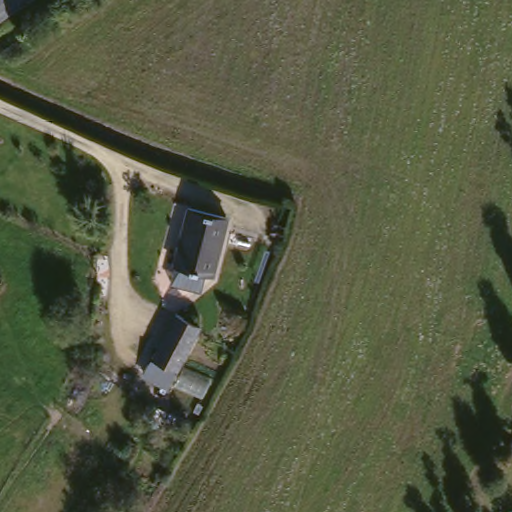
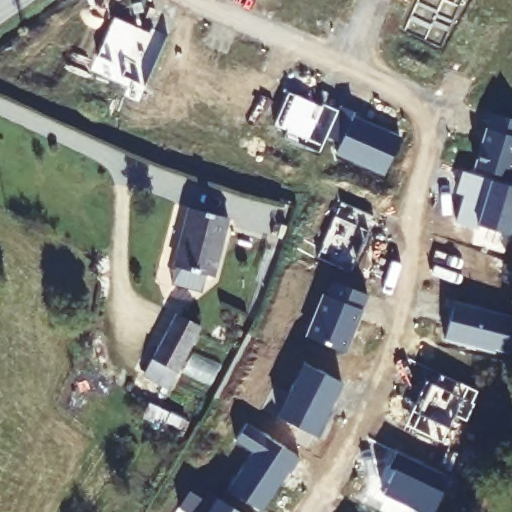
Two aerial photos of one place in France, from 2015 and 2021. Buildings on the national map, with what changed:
new [(419,0),(463,0),(442,48),(405,31),(419,0)]
new [(115,17),(150,32),(152,27),(169,35),(145,87),(122,77),(125,69),(98,57),(115,17)]
new [(290,94),(322,107),(324,104),(340,111),(329,137),(322,154),(286,139),(289,132),(276,127),(290,94)]
new [(340,111),(342,106),(356,112),(354,117),(403,137),(387,174),(339,154),(343,143),(329,137),(340,111)]
new [(512,119),(512,170),(510,177),(476,167),(492,113),(512,119)]
new [(458,192),(464,172),(512,186),(512,229),(511,234),(479,225),(478,229),(457,222),(466,195),(458,192)]
unchanged [(228,212),(212,271),(176,261),(191,202),(228,212)]
new [(345,202),(377,217),(371,231),(372,231),(354,272),(320,258),(345,202)]
new [(329,296),(334,298),(340,283),(373,297),(350,353),(312,338),(329,296)]
new [(512,314),(512,340),(509,352),(495,348),(495,352),(445,339),(455,300),(512,314)]
unchanged [(149,363),(157,348),(182,303),(205,316),(180,361),(172,376),(149,363)]
new [(307,364),(344,382),(329,412),(331,419),(322,438),(280,417),(307,364)]
new [(426,380),(435,384),(440,373),(477,391),(471,402),(474,403),(466,420),(454,415),(441,442),(412,427),(405,423),(411,410),(426,380)]
new [(183,430),(166,422),(164,426),(153,421),(143,416),(148,406),(159,408),(170,413),(187,421),(183,430)]
new [(264,512),(231,490),(256,452),(238,441),(249,425),(302,459),(293,473),(291,472),(275,496),(264,512)]
new [(390,467),(397,451),(450,477),(433,512),(422,512),(383,493),(395,469),(390,467)]
new [(214,506),(219,498),(241,512),(188,512),(182,508),(192,492),(214,506)]

